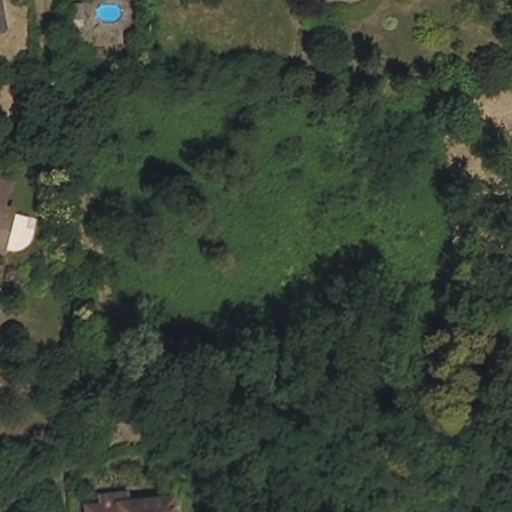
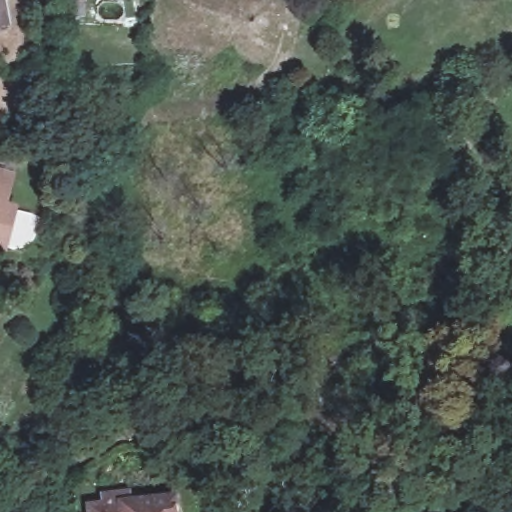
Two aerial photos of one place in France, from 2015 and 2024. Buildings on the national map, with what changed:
unchanged [(0,26),(0,0),(4,0),(8,24),(0,26)]
unchanged [(3,176),(0,189),(0,176),(3,176)]
unchanged [(5,210),(0,231),(0,209),(5,210)]
unchanged [(26,239),(19,248),(15,251),(8,251),(0,250),(0,233),(26,239)]
unchanged [(94,506),(109,504),(107,493),(134,489),(136,501),(179,496),(181,512),(95,512),(94,506)]

